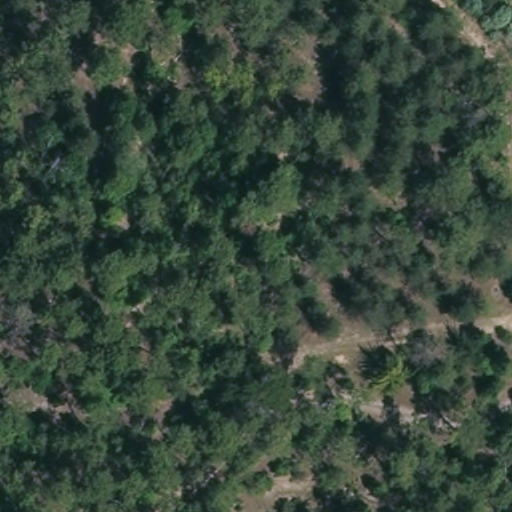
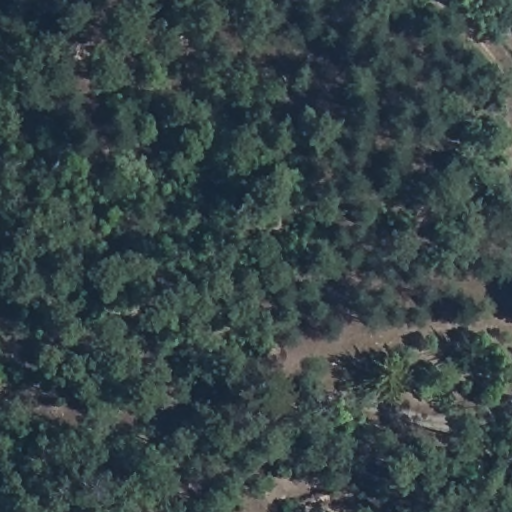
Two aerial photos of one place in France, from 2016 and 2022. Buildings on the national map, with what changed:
unchanged [(510,21),(512,20),(512,26),(510,21)]
unchanged [(0,489),(0,475),(6,473),(10,487),(0,489)]

